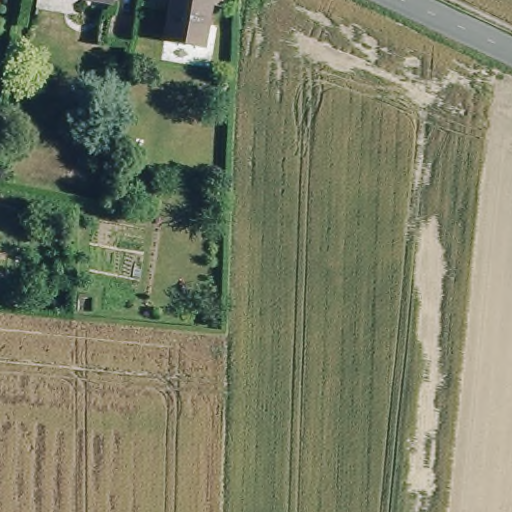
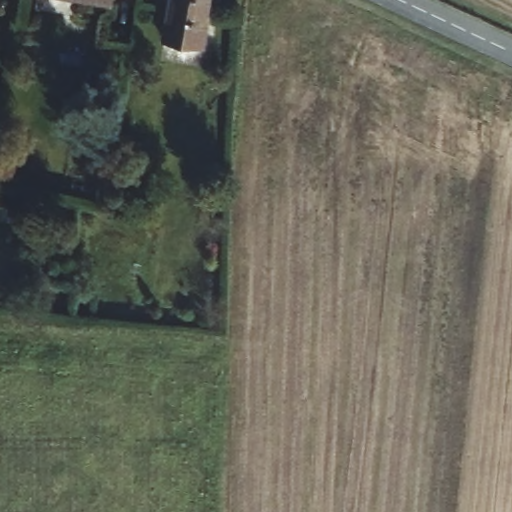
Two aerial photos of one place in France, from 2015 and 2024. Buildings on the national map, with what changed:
unchanged [(107,6),(84,0),(109,0),(107,6)]
unchanged [(215,9),(208,7),(197,50),(157,40),(168,0),(216,0),(215,9)]
unchanged [(138,205),(115,201),(118,177),(142,181),(138,205)]

